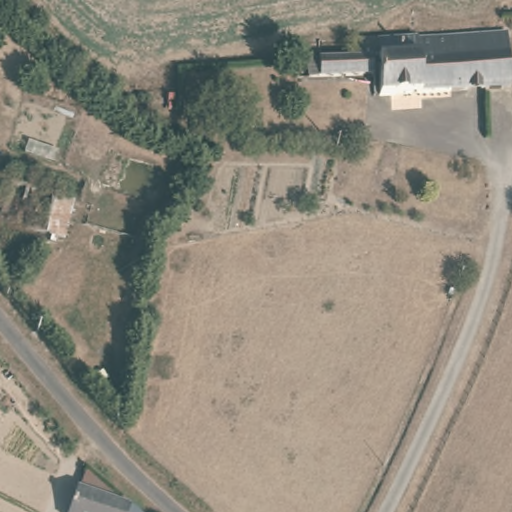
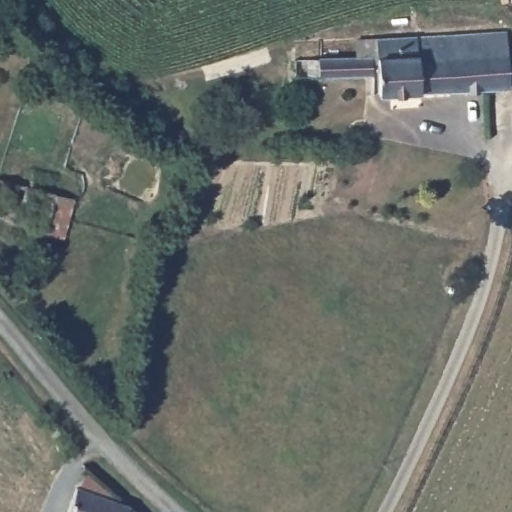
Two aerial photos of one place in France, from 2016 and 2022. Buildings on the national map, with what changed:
unchanged [(507,29),(511,89),(377,97),(375,79),(320,80),(320,58),(357,57),(358,42),(507,29)]
unchanged [(126,511),(126,512),(68,512),(76,492),(126,511)]

